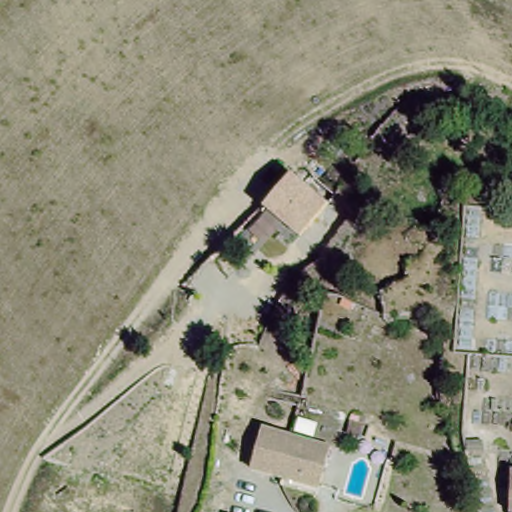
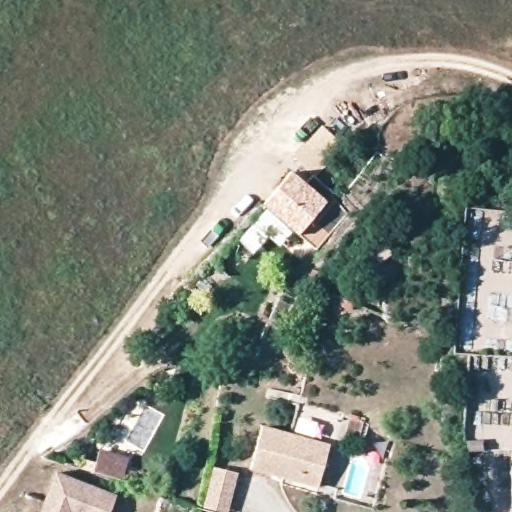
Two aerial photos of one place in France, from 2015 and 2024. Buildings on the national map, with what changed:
unchanged [(313,255),(263,212),(294,177),(308,189),(315,180),(331,199),(329,201),(344,218),(313,255)]
unchanged [(283,482),(285,471),(251,461),(262,424),(333,443),(322,481),(319,491),(283,482)]
unchanged [(380,431),(376,448),(360,445),(366,427),(380,431)]
new [(135,482),(124,480),(94,472),(99,453),(129,461),(126,473),(136,477),(135,482)]
new [(215,467),(236,472),(227,511),(206,506),(215,467)]
new [(52,476),(113,496),(108,512),(41,512),(52,476)]

